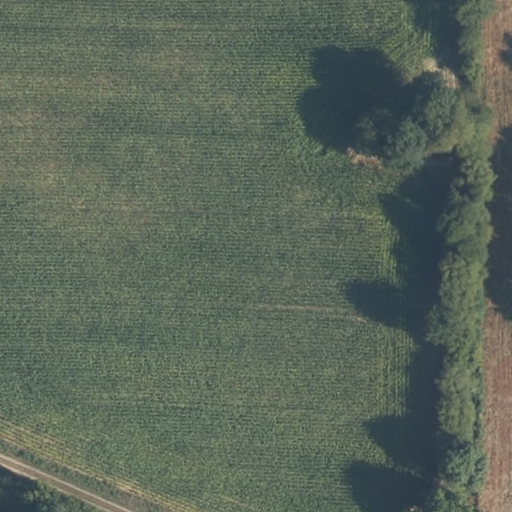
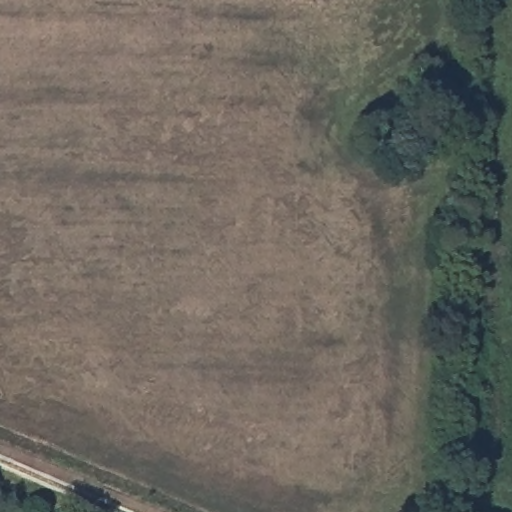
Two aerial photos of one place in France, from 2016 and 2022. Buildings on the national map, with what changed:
[]

